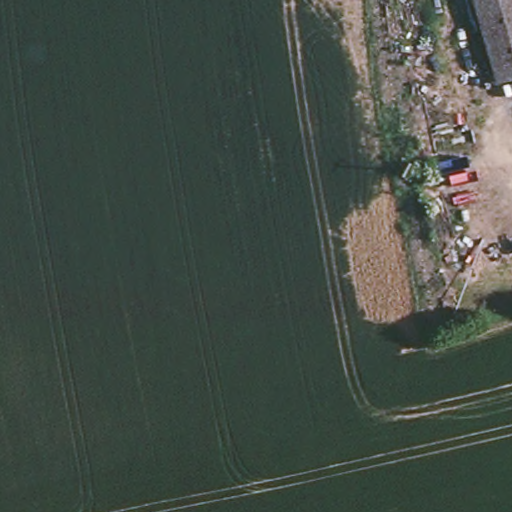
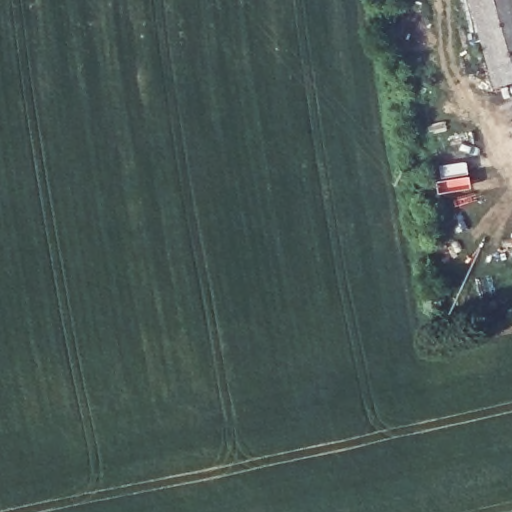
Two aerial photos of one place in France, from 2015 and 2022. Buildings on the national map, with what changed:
unchanged [(492,77),(469,0),(512,0),(512,71),(492,77)]

